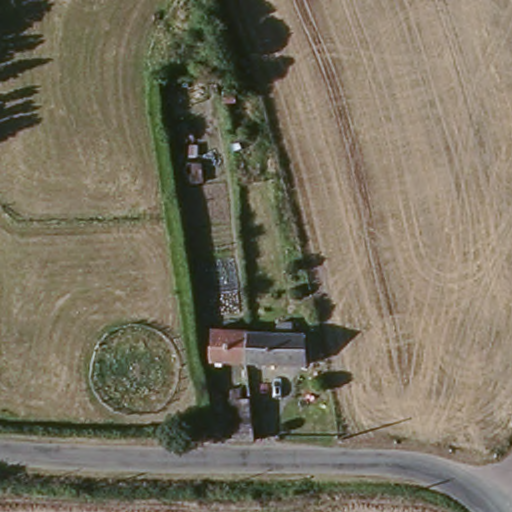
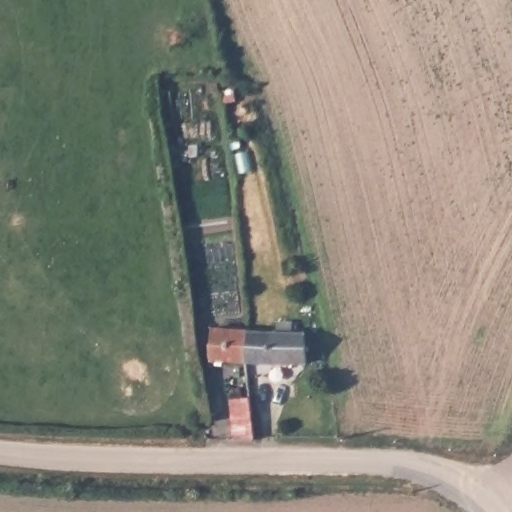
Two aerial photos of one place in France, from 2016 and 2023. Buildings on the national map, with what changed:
unchanged [(245,360),(212,358),(215,332),(248,335),(305,340),(302,367),(245,360)]
unchanged [(235,440),(228,396),(247,392),(258,441),(235,440)]

